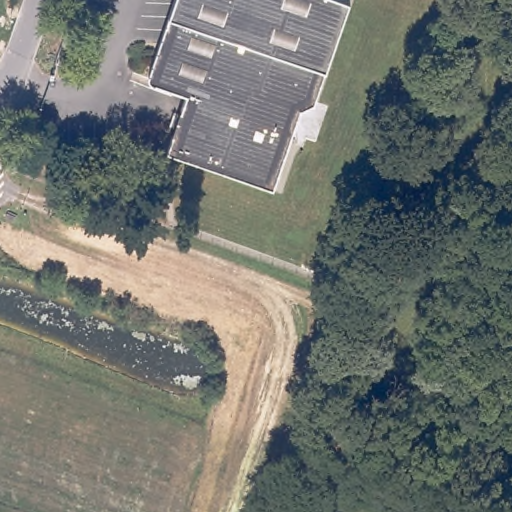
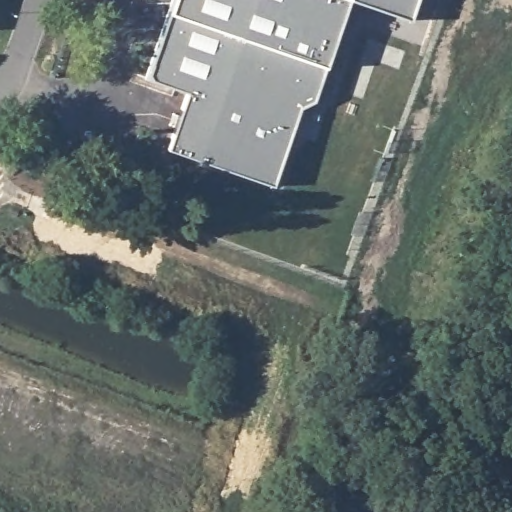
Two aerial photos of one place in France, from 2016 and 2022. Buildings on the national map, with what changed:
unchanged [(316,106),(302,115),(275,189),(168,152),(188,97),(149,81),(177,0),(351,0),(316,106)]
new [(410,21),(353,0),(417,0),(410,21)]

